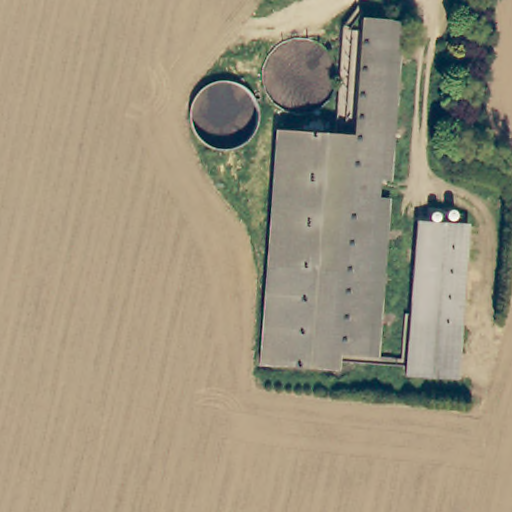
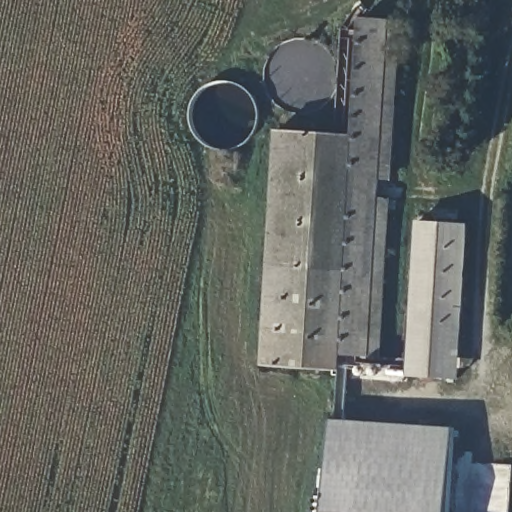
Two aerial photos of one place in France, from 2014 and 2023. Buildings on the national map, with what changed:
unchanged [(258,367),(277,130),(355,139),(363,22),(403,25),(391,184),(379,182),(377,200),(390,202),(378,358),(339,355),(337,373),(258,367)]
unchanged [(420,224),(469,228),(456,382),(408,377),(420,224)]
new [(449,512),(326,512),(332,418),(455,427),(449,512)]

